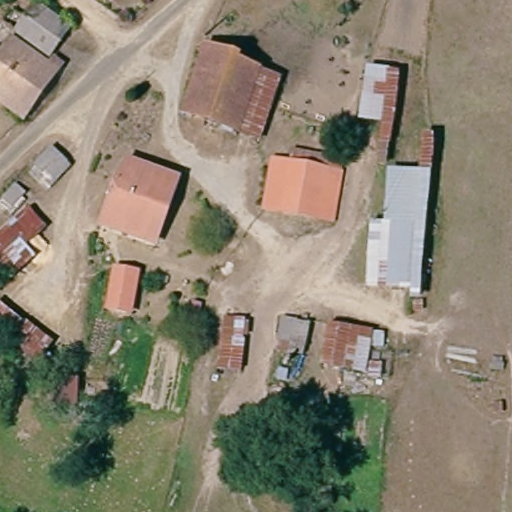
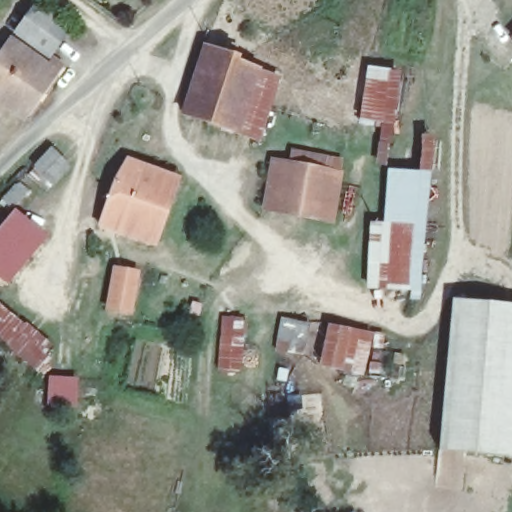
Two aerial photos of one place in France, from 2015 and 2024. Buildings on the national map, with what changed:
unchanged [(41,9),(69,32),(50,55),(22,32),(41,9)]
unchanged [(57,59),(66,65),(22,115),(0,95),(0,57),(19,36),(50,64),(57,59)]
new [(512,36),(512,37),(511,37),(512,36)]
unchanged [(180,117),(201,50),(237,57),(236,62),(281,78),(261,142),(180,117)]
unchanged [(379,125),(356,121),(365,70),(387,72),(379,125)]
unchanged [(58,192),(38,171),(31,164),(51,145),(70,165),(65,170),(72,177),(58,192)]
unchanged [(182,177),(169,242),(101,229),(110,185),(115,162),(182,177)]
unchanged [(328,220),(266,209),(274,163),(334,174),(328,220)]
unchanged [(410,229),(382,228),(388,166),(432,171),(421,292),(409,292),(410,229)]
unchanged [(26,213),(44,227),(25,246),(36,262),(3,291),(0,287),(0,237),(26,213)]
unchanged [(371,227),(382,228),(410,229),(409,292),(365,292),(371,227)]
new [(104,308),(112,266),(140,271),(132,313),(104,308)]
new [(451,300),(512,304),(512,458),(437,450),(451,300)]
unchanged [(52,340),(46,350),(55,362),(41,375),(0,340),(0,308),(52,340)]
new [(217,370),(224,315),(247,318),(241,371),(217,370)]
new [(272,350),(279,315),(309,322),(302,356),(272,350)]
unchanged [(320,368),(327,328),(372,332),(368,376),(320,368)]

